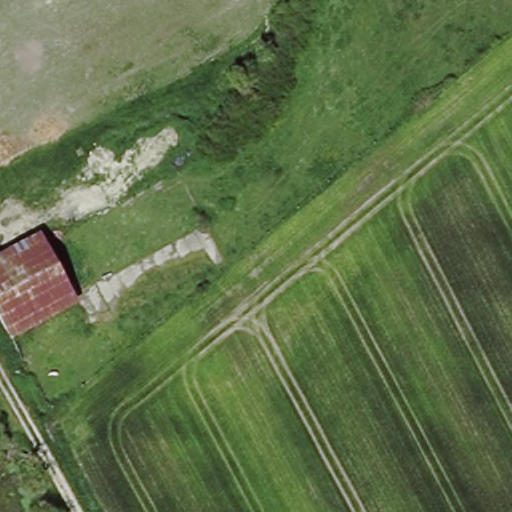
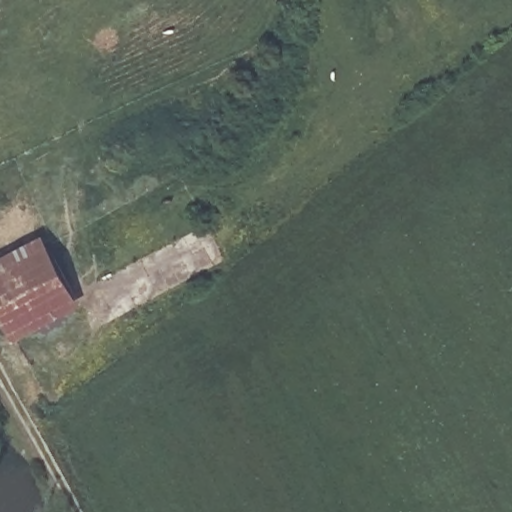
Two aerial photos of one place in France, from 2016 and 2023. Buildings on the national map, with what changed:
unchanged [(81,303),(14,340),(0,311),(0,255),(44,233),(81,303)]

